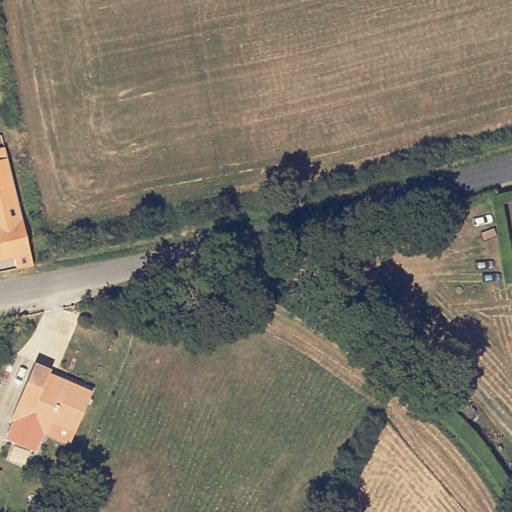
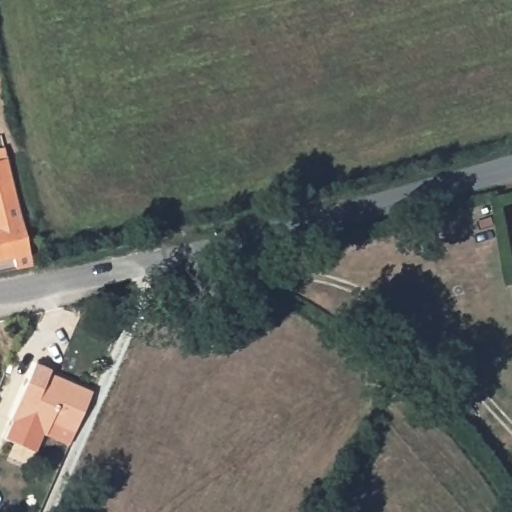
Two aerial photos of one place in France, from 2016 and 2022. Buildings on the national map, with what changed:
unchanged [(4,158),(9,177),(14,200),(30,264),(15,268),(13,258),(0,261),(0,148),(1,148),(4,158)]
unchanged [(49,438),(15,423),(41,364),(55,370),(51,380),(64,386),(65,382),(96,396),(79,435),(74,449),(49,438)]

